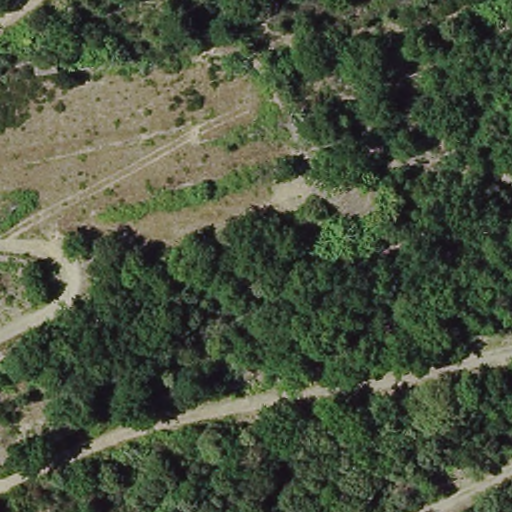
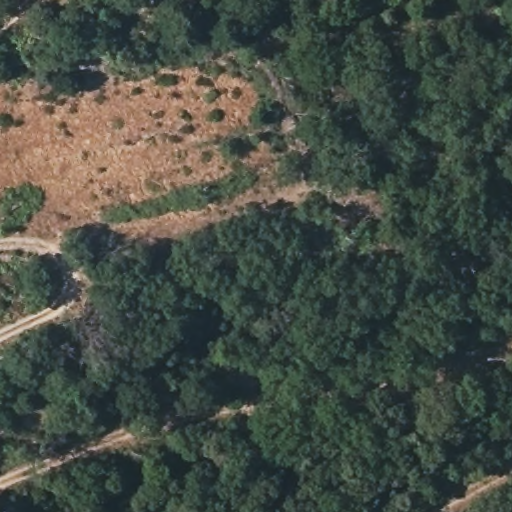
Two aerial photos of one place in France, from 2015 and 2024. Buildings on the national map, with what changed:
unchanged [(59,57),(61,74),(42,75),(42,62),(59,57)]
unchanged [(500,162),(502,171),(490,175),(487,165),(500,162)]
unchanged [(123,316),(112,319),(110,312),(121,307),(123,316)]

